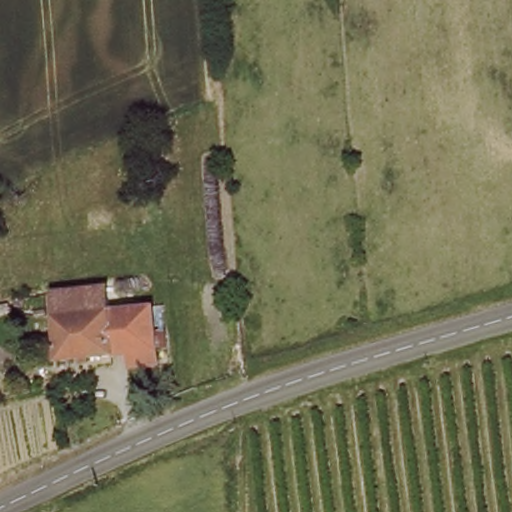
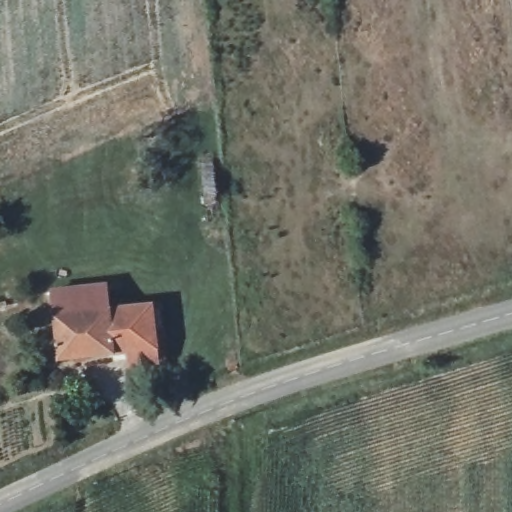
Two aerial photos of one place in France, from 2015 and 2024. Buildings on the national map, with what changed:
unchanged [(110,311),(155,308),(159,365),(134,366),(132,356),(62,362),(55,293),(62,292),(110,287),(110,311)]

